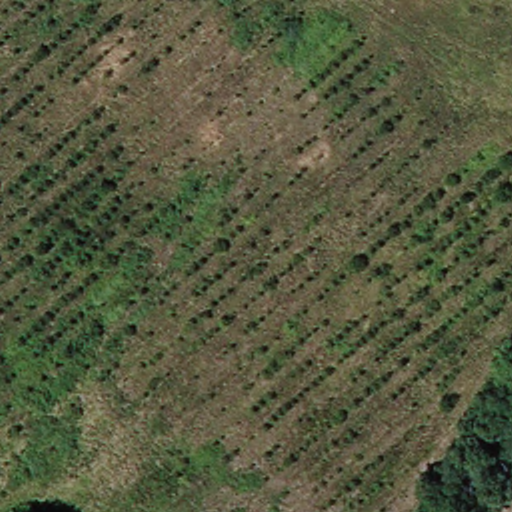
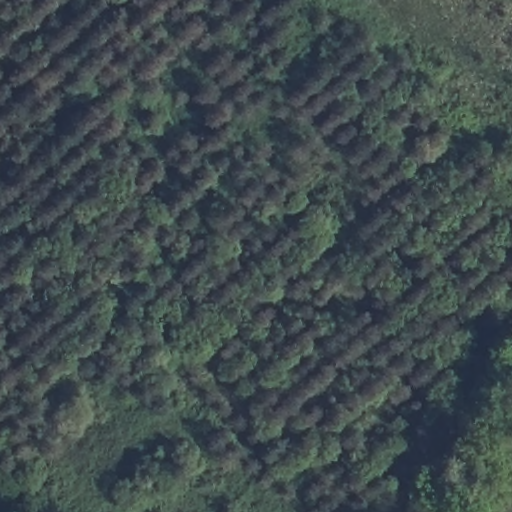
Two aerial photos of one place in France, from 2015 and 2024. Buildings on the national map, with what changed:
[]

